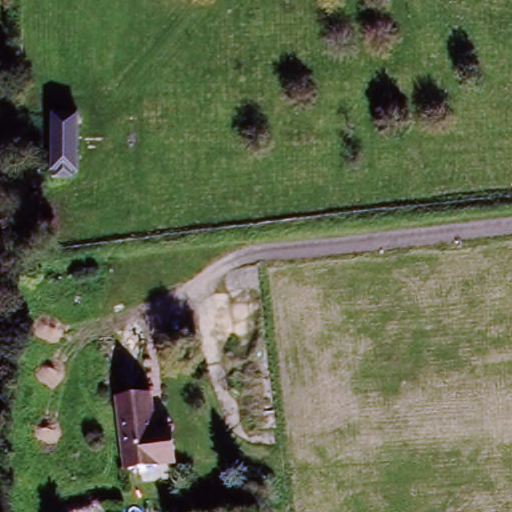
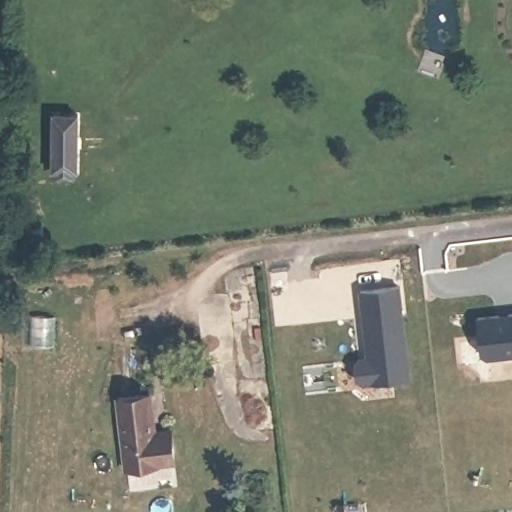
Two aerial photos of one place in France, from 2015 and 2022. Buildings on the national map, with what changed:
unchanged [(60,177),(55,124),(80,121),(85,175),(60,177)]
unchanged [(1,293),(0,293),(0,271),(1,293)]
new [(406,379),(358,384),(353,380),(352,365),(356,360),(366,359),(359,291),(397,287),(406,379)]
new [(481,354),(477,318),(512,314),(512,355),(487,358),(481,354)]
demolished [(0,343),(0,319),(2,319),(5,343),(0,343)]
unchanged [(128,476),(121,400),(152,398),(158,442),(172,441),(178,473),(128,476)]

